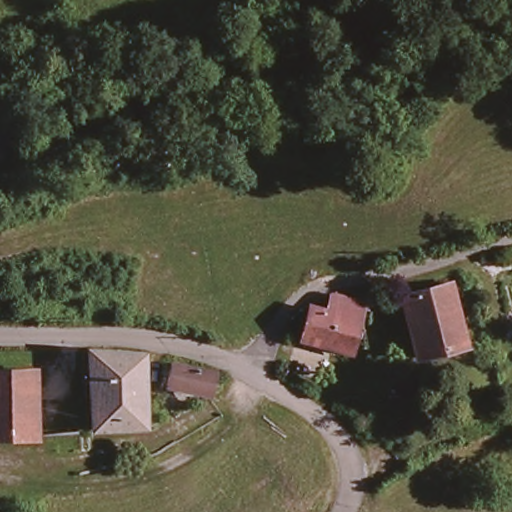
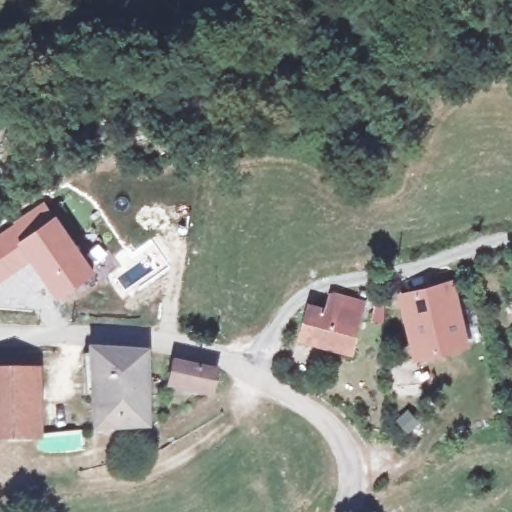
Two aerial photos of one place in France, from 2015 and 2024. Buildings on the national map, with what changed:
new [(45,198),(56,212),(95,269),(57,298),(30,261),(0,282),(0,230),(45,198)]
unchanged [(455,286),(467,345),(425,356),(417,358),(405,296),(412,295),(455,286)]
unchanged [(350,351),(298,336),(313,298),(335,307),(342,290),(369,299),(350,351)]
unchanged [(92,431),(95,378),(87,377),(88,365),(95,365),(96,348),(97,348),(113,349),(120,350),(145,351),(147,351),(148,351),(144,423),(142,423),(92,431)]
unchanged [(214,388),(175,380),(180,357),(218,366),(214,388)]
unchanged [(40,372),(36,441),(0,439),(0,369),(40,372)]

